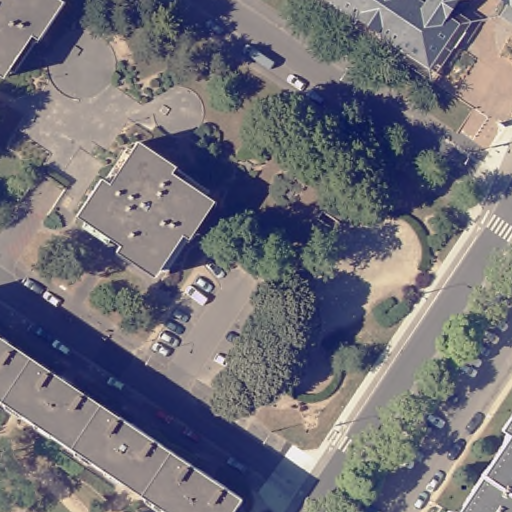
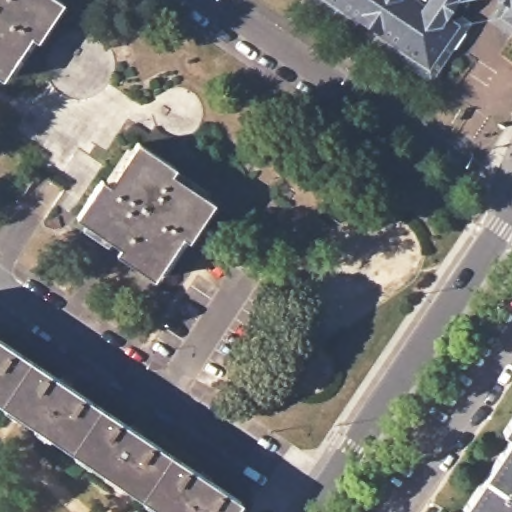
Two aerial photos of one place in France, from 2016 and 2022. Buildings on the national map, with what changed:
unchanged [(65,5),(41,41),(34,37),(6,80),(0,76),(0,0),(59,0),(65,5)]
unchanged [(469,5),(466,4),(455,22),(464,29),(436,72),(329,0),(489,0),(469,5)]
unchanged [(512,6),(503,0),(512,0),(512,6)]
unchanged [(512,6),(512,22),(505,17),(512,6)]
unchanged [(105,181),(112,185),(141,143),(179,169),(176,174),(218,204),(192,242),(186,239),(157,280),(120,255),(124,249),(80,219),(105,181)]
unchanged [(245,502),(238,512),(165,512),(0,402),(0,339),(245,502)]
unchanged [(512,424),(512,437),(506,433),(512,424)]
unchanged [(512,512),(465,512),(512,442),(512,512)]

